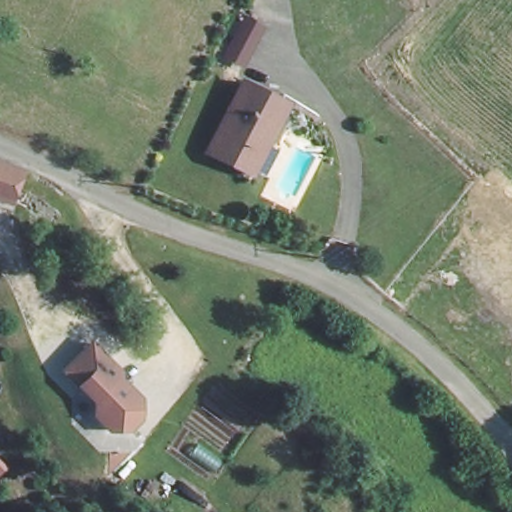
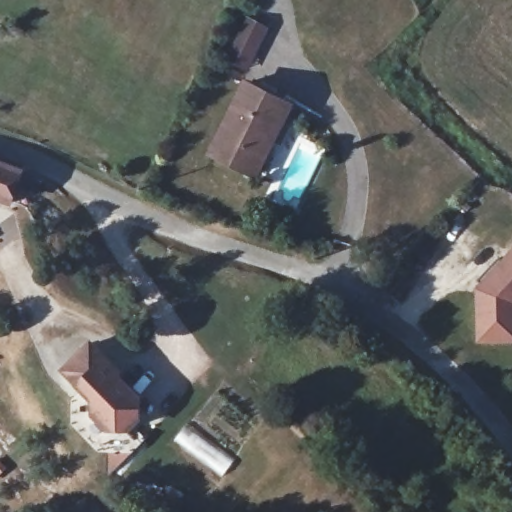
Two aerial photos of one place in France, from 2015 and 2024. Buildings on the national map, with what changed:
unchanged [(210,147),(246,81),(286,102),(292,105),(274,139),(257,172),(210,147)]
unchanged [(0,159),(23,169),(13,198),(0,194),(0,159)]
new [(477,343),(474,288),(512,248),(512,342),(477,343)]
unchanged [(146,394),(148,422),(123,433),(94,423),(95,398),(63,371),(92,341),(146,394)]

